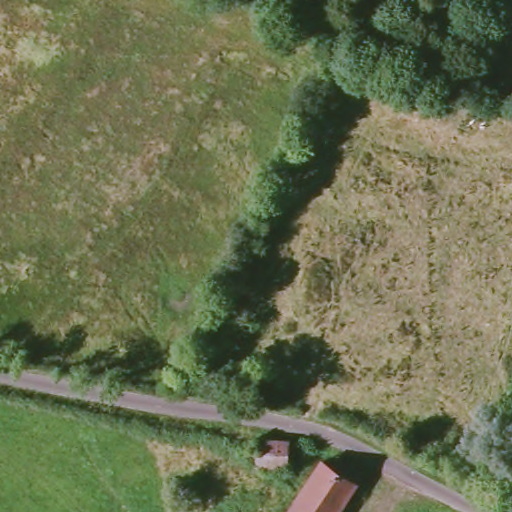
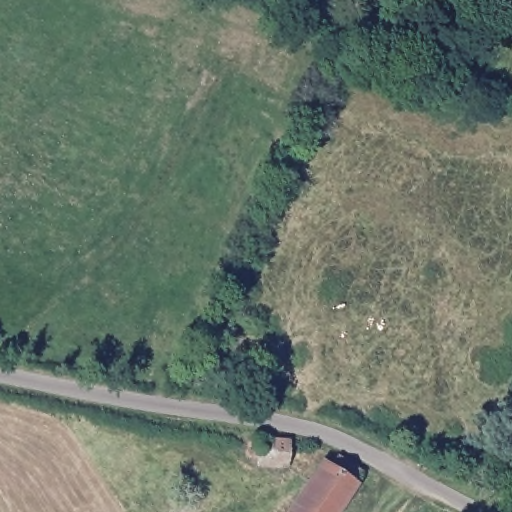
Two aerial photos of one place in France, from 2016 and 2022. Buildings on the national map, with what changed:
unchanged [(286,467),(256,465),(257,457),(252,456),(248,455),(246,453),(246,451),(245,448),(246,446),(247,444),(249,442),(251,441),(253,441),(258,441),(258,439),(288,441),(286,467)]
unchanged [(321,461),(331,467),(336,457),(361,473),(355,483),(357,484),(339,512),(287,512),(321,461)]

